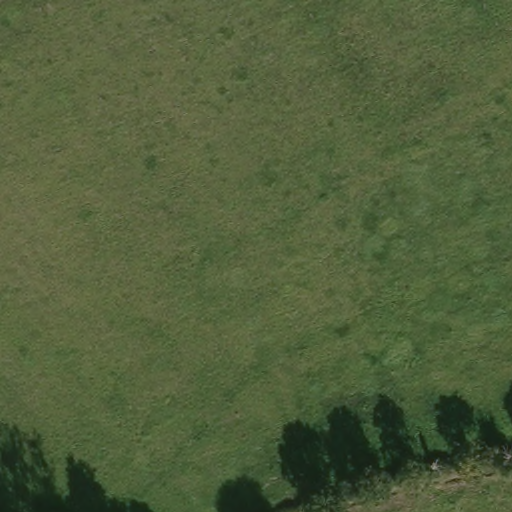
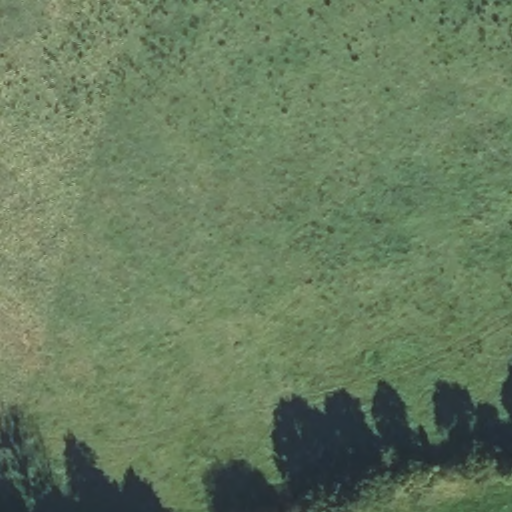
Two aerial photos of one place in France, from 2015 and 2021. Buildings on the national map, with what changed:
[]

